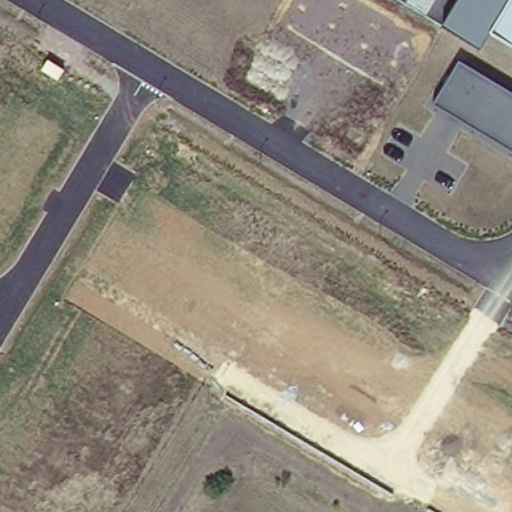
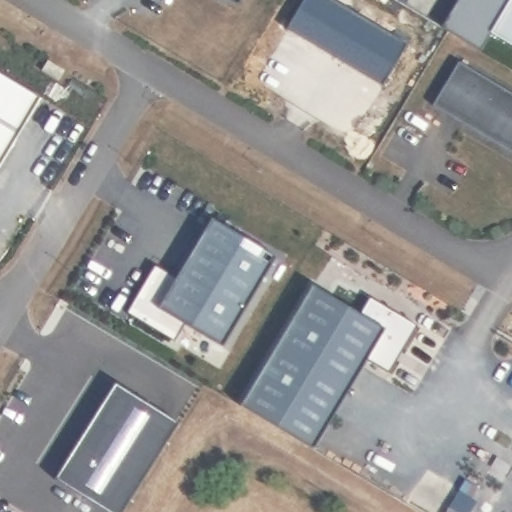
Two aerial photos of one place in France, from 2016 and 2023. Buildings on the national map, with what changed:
new [(241,0),(238,5),(229,0),(241,0)]
new [(286,29),(304,0),(334,0),(408,45),(382,87),(286,29)]
unchanged [(492,31),(480,49),(442,26),(458,0),(512,0),(512,43),(492,31)]
unchanged [(432,105),(458,60),(512,92),(512,152),(432,105)]
new [(48,62),(65,72),(59,81),(42,71),(48,62)]
new [(0,73),(41,98),(0,166),(0,73)]
new [(276,257),(222,348),(184,324),(174,342),(126,313),(155,265),(176,278),(212,218),(276,257)]
new [(312,286),(360,314),(370,297),(417,325),(388,374),(367,361),(313,450),(240,407),(312,286)]

